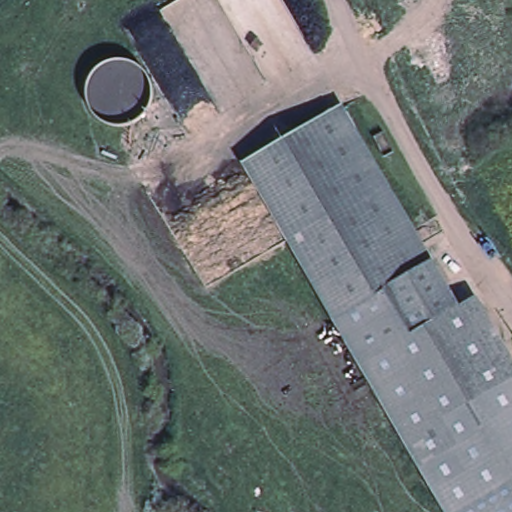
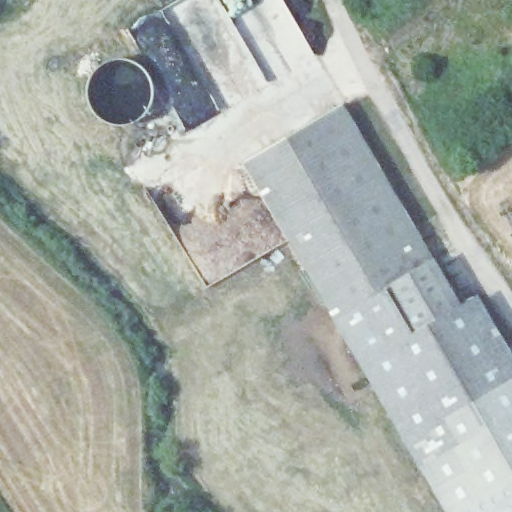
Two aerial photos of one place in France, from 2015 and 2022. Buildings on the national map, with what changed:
unchanged [(342,105),(457,305),(409,333),(384,290),(334,318),(243,162),(342,105)]
unchanged [(384,290),(409,333),(457,305),(476,295),(512,359),(512,484),(463,512),(446,512),(334,318),(384,290)]
unchanged [(512,484),(512,512),(463,512),(512,484)]

